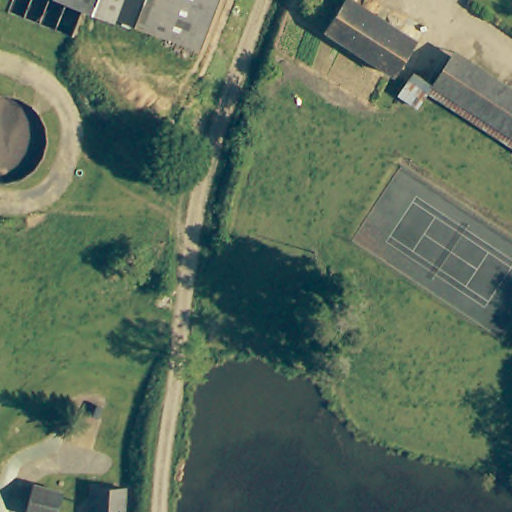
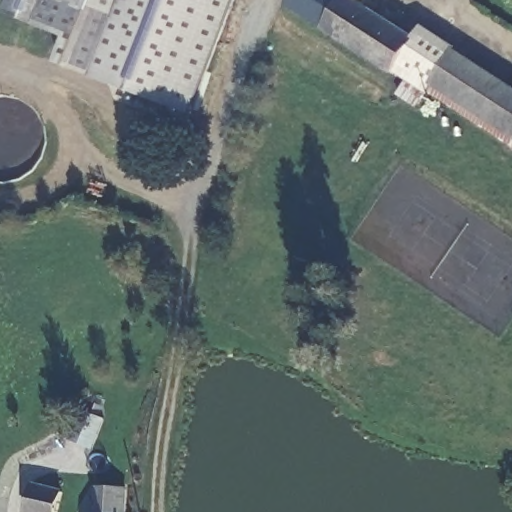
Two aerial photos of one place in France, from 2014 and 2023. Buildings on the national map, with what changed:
new [(58,65),(67,39),(5,14),(10,0),(235,0),(191,116),(58,65)]
unchanged [(394,68),(391,72),(343,41),(325,29),(344,0),(355,0),(389,20),(412,34),(414,36),(394,68)]
unchanged [(415,73),(434,80),(459,51),(512,85),(512,147),(429,96),(419,107),(399,95),(415,73)]
unchanged [(103,408),(99,420),(86,415),(90,403),(103,408)]
unchanged [(65,488),(60,512),(44,512),(28,507),(38,480),(65,488)]
unchanged [(99,480),(130,480),(129,512),(98,512),(99,480)]

